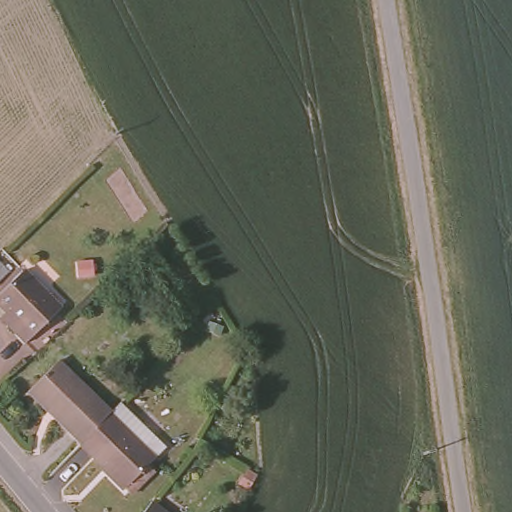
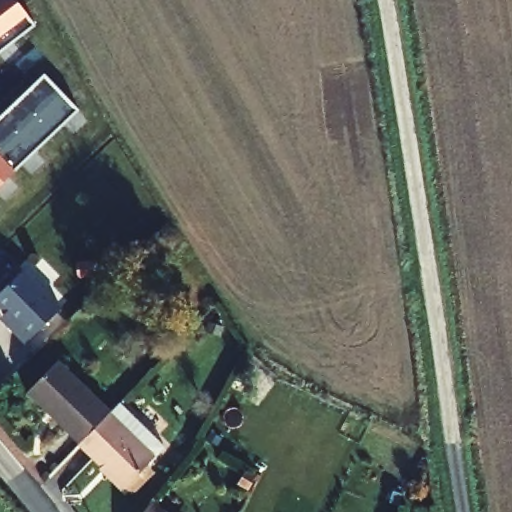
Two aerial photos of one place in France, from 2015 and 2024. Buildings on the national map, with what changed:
new [(17,0),(36,26),(0,53),(0,0),(17,0)]
new [(80,110),(0,184),(0,117),(45,73),(80,110)]
unchanged [(26,343),(9,329),(14,322),(0,308),(0,299),(26,274),(61,308),(26,343)]
unchanged [(75,447),(23,396),(53,366),(104,417),(75,447)]
unchanged [(155,452),(119,492),(75,447),(104,417),(112,408),(155,452)]
unchanged [(158,512),(144,512),(149,506),(158,512)]

